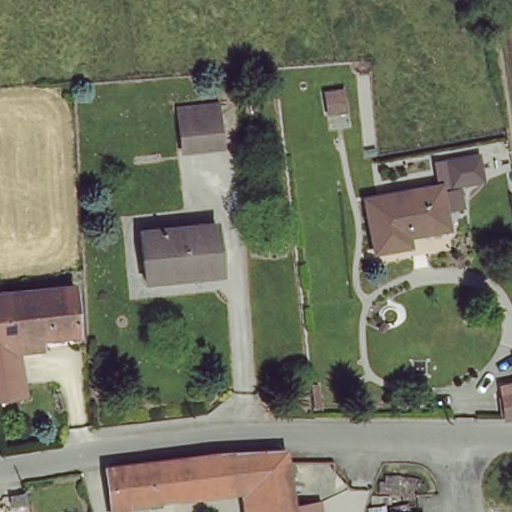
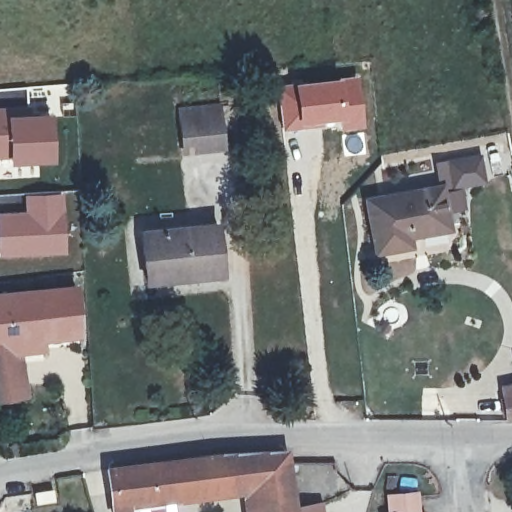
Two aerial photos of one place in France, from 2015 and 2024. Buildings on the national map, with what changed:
new [(359,75),(363,125),(340,129),(338,122),(282,131),(277,84),(359,75)]
demolished [(331,94),(350,90),(353,111),(345,113),(343,104),(333,105),(331,94)]
unchanged [(185,149),(182,117),(181,106),(219,103),(220,114),(223,145),(185,149)]
new [(0,159),(0,107),(28,105),(28,115),(50,115),(53,161),(8,165),(8,159),(0,159)]
unchanged [(408,240),(373,245),(365,194),(438,181),(445,221),(407,228),(408,240)]
new [(23,194),(65,192),(68,255),(0,259),(0,212),(23,210),(23,194)]
unchanged [(144,285),(143,270),(140,234),(216,226),(221,270),(200,272),(202,278),(144,285)]
unchanged [(28,393),(0,397),(0,294),(75,287),(77,335),(22,341),(28,393)]
unchanged [(504,420),(500,392),(512,391),(512,419),(504,420)]
unchanged [(112,501),(107,463),(234,448),(285,447),(294,512),(254,512),(250,486),(223,490),(223,487),(112,501)]
unchanged [(28,501),(15,504),(13,493),(27,490),(28,501)]

